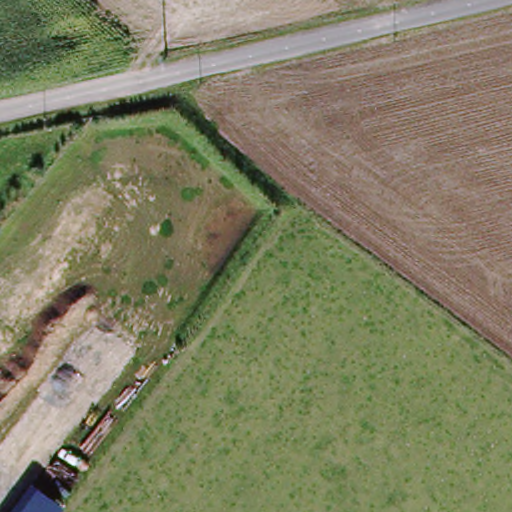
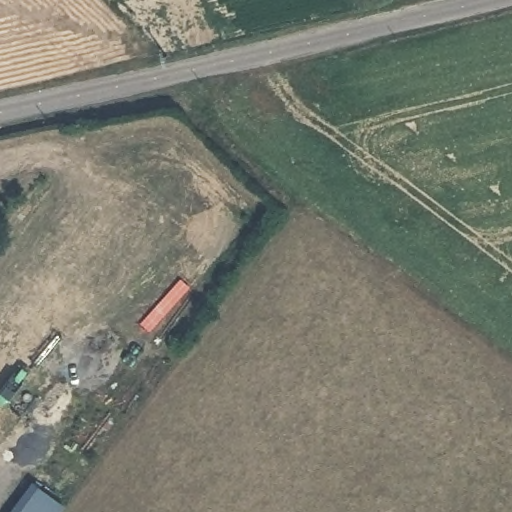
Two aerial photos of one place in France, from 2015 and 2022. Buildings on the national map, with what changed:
unchanged [(67,509),(64,512),(11,512),(34,483),(67,509)]

